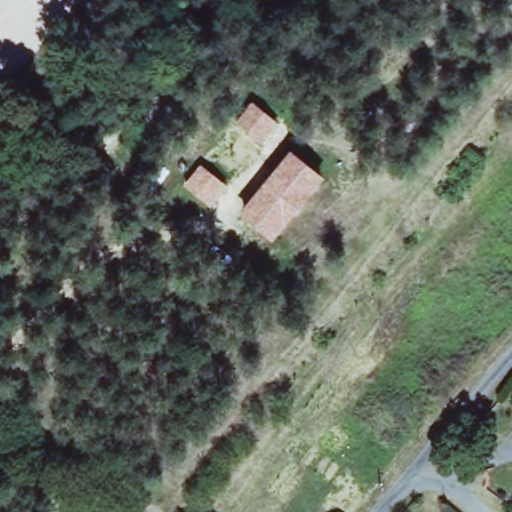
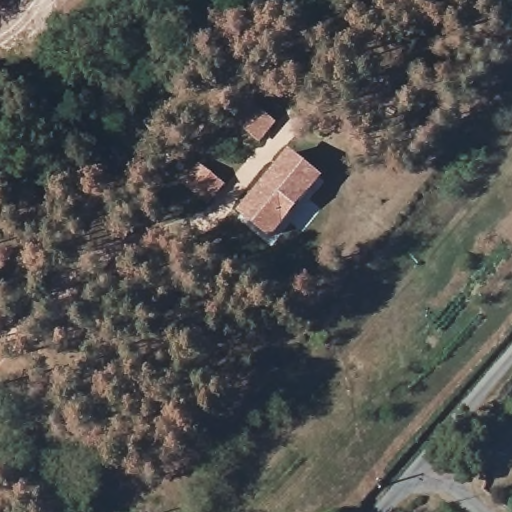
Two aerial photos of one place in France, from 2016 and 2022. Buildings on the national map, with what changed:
unchanged [(277,125),(262,146),(236,123),(251,104),(277,125)]
unchanged [(324,179),(274,245),(239,217),(290,153),(324,179)]
unchanged [(227,187),(210,209),(184,188),(201,167),(227,187)]

